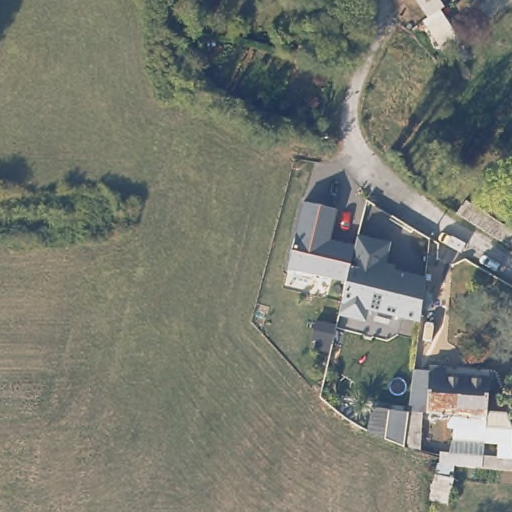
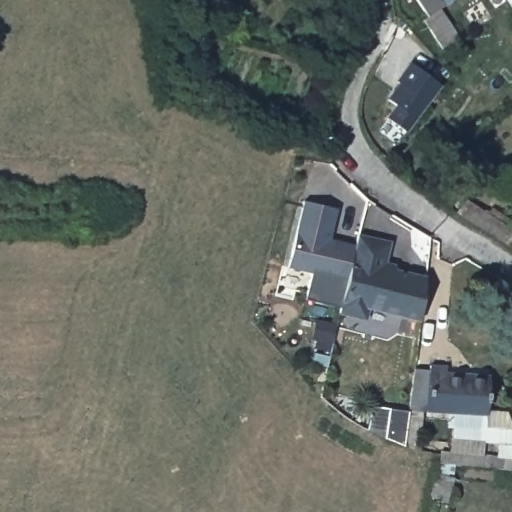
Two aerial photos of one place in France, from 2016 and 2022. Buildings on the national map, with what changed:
unchanged [(428,19),(415,0),(438,0),(443,9),(428,19)]
unchanged [(459,39),(443,50),(429,31),(445,20),(459,39)]
new [(394,105),(386,99),(398,82),(396,80),(409,61),(442,85),(406,132),(384,117),(394,105)]
unchanged [(454,206),(466,194),(498,214),(502,209),(512,215),(512,241),(454,206)]
unchanged [(338,206),(331,238),(355,243),(358,233),(393,240),(388,265),(425,275),(419,322),(369,310),(367,319),(340,312),(348,281),(288,267),(303,199),(338,206)]
unchanged [(484,375),(488,413),(469,415),(428,418),(427,405),(424,371),(428,371),(439,371),(440,378),(470,375),(484,375)]

